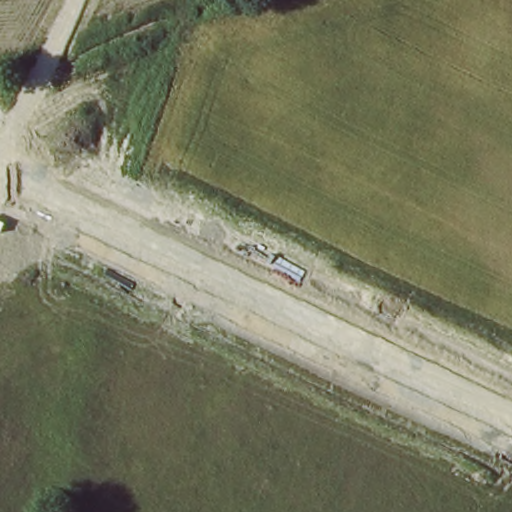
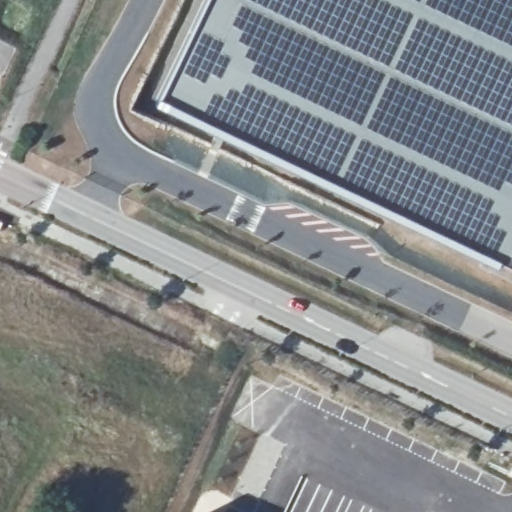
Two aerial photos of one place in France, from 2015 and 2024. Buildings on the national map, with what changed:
new [(174,106),(223,0),(512,0),(512,268),(174,106)]

